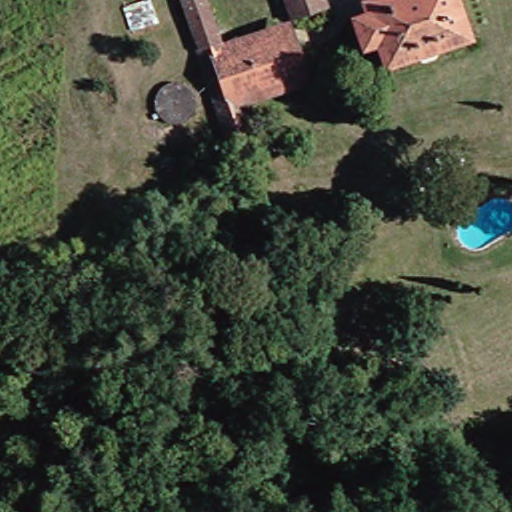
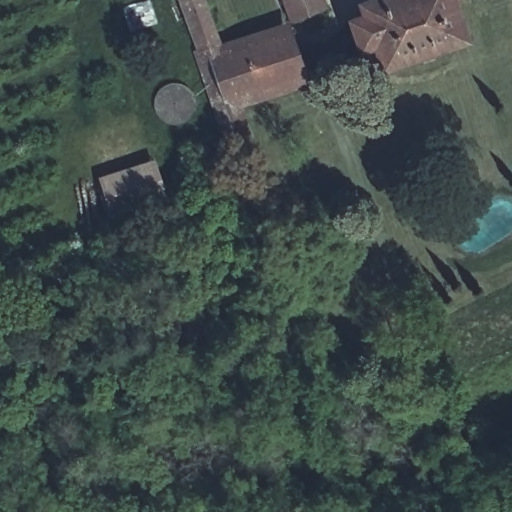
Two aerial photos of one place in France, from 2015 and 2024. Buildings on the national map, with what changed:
unchanged [(174,1),(168,4),(167,0),(196,0),(209,39),(192,45),(174,1)]
unchanged [(325,7),(290,20),(282,0),(322,0),(325,7)]
unchanged [(380,0),(455,0),(470,42),(388,70),(385,60),(372,65),(368,50),(363,52),(353,23),(370,17),(365,5),(380,0)]
unchanged [(280,35),(294,76),(253,91),(237,50),(280,35)]
unchanged [(217,135),(190,56),(233,40),(237,50),(253,91),(232,98),(242,126),(247,140),(223,149),(217,135)]
unchanged [(153,77),(160,75),(166,75),(172,77),(177,81),(180,87),(182,94),(182,100),(176,110),(171,114),(165,116),(159,116),(152,114),(147,110),(144,105),(141,99),(141,92),(144,86),(147,80),(153,77)]
new [(110,212),(100,180),(157,160),(168,193),(110,212)]

